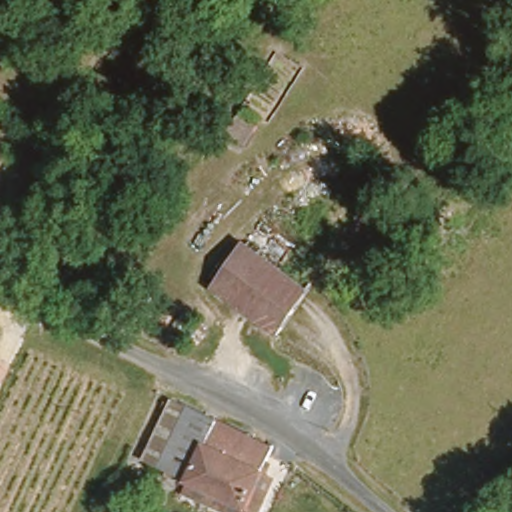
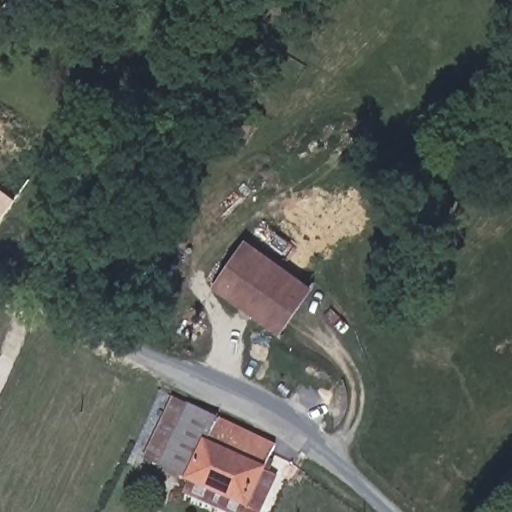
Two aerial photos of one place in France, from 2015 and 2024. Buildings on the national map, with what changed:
new [(16,199),(0,223),(0,187),(16,199)]
unchanged [(248,243),(313,282),(285,326),(221,287),(248,243)]
unchanged [(147,453),(170,394),(275,440),(249,498),(159,458),(147,453)]
unchanged [(262,512),(240,512),(152,473),(159,458),(249,498),(275,440),(292,448),(262,512)]

